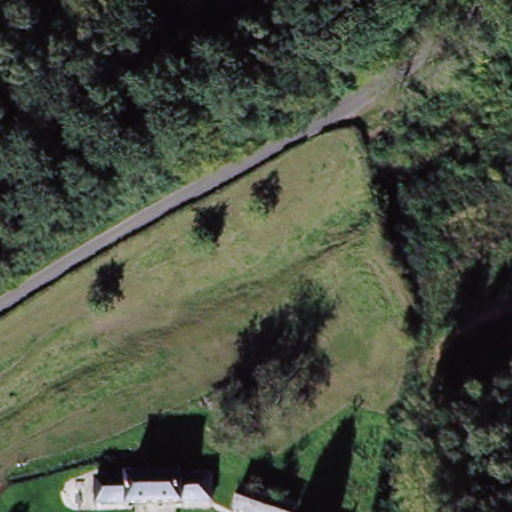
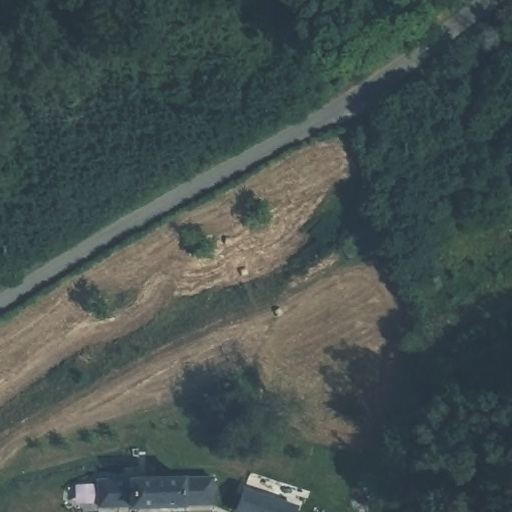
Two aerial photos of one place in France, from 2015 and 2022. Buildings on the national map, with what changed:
unchanged [(97,487),(128,483),(179,479),(206,477),(208,501),(183,503),(131,507),(99,510),(97,487)]
unchanged [(245,512),(240,510),(246,491),(295,510),(294,512),(245,512)]

